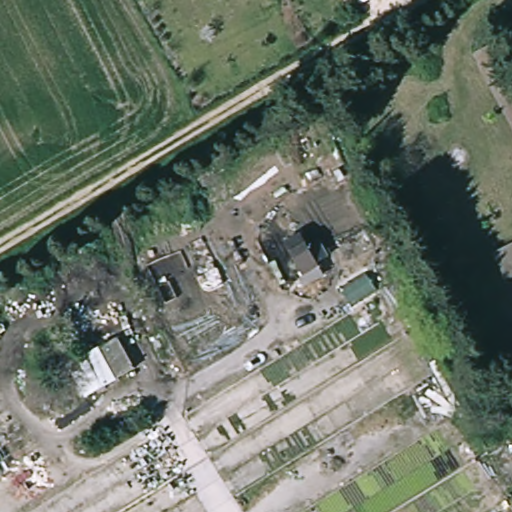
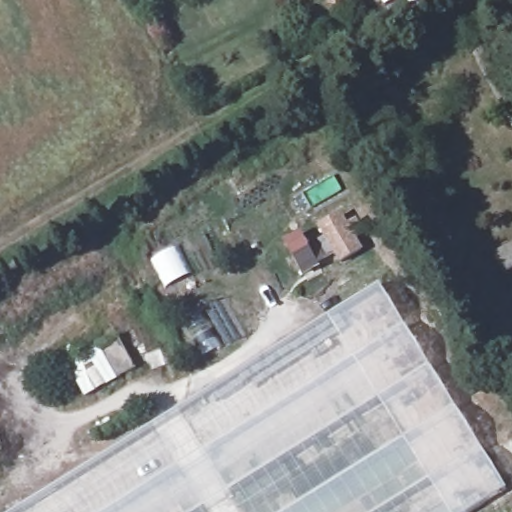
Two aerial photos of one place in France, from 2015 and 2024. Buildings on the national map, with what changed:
new [(512,127),(476,63),(482,60),(478,53),(487,48),(512,93),(512,127)]
unchanged [(278,243),(294,233),(301,247),(314,240),(324,260),(297,278),(278,243)]
unchanged [(493,252),(512,242),(512,267),(502,272),(493,252)]
new [(381,288),(508,493),(477,512),(22,512),(381,288)]
unchanged [(80,399),(62,368),(113,337),(130,368),(80,399)]

